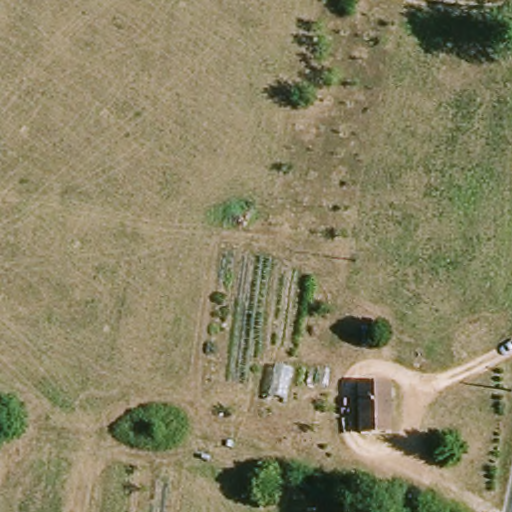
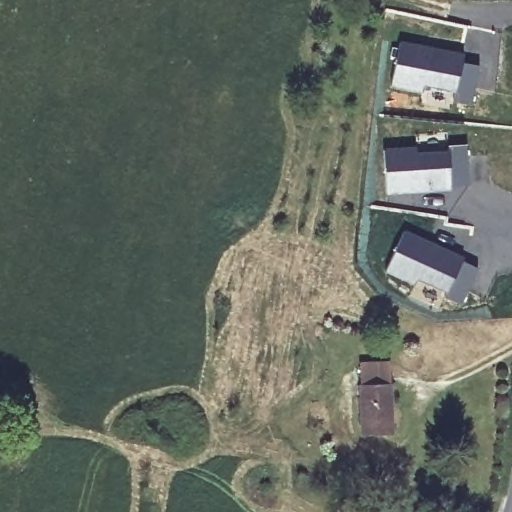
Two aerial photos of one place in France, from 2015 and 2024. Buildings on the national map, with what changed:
new [(463,64),(480,66),(474,103),(455,100),(456,91),(423,86),(423,90),(392,84),(399,44),(464,54),(463,64)]
new [(469,185),(452,185),(452,189),(386,195),(380,150),(415,146),(417,151),(466,146),(469,185)]
new [(464,260),(478,267),(462,302),(445,295),(447,290),(417,280),(415,285),(385,270),(404,230),(464,258),(464,260)]
unchanged [(356,433),(365,386),(394,391),(385,440),(356,433)]

